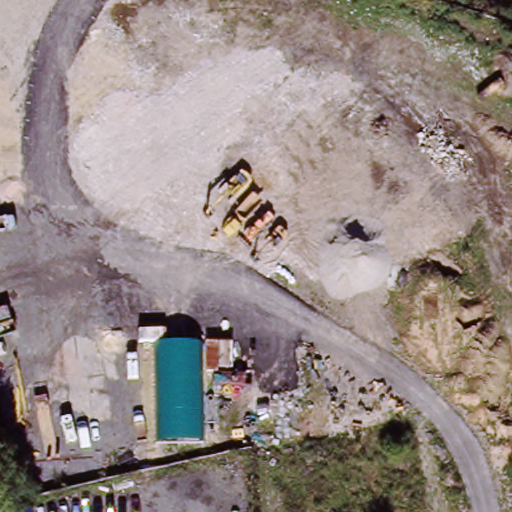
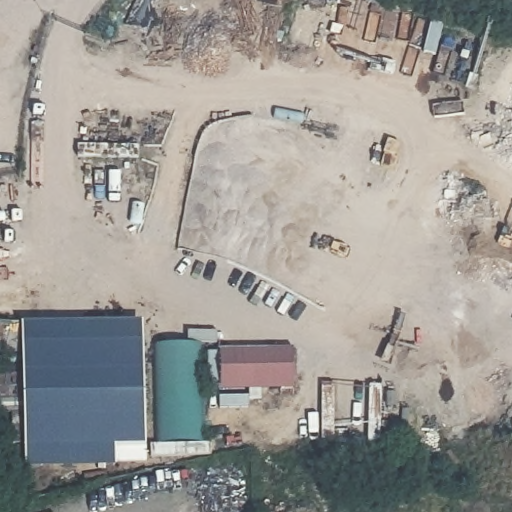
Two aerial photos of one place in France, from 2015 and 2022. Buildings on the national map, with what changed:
demolished [(113,107),(122,130),(77,150),(68,126),(113,107)]
new [(143,320),(146,441),(146,446),(146,461),(115,460),(115,466),(24,468),(20,324),(143,320)]
demolished [(114,419),(74,423),(65,338),(85,336),(86,344),(106,342),(114,419)]
new [(197,344),(201,442),(211,442),(213,457),(146,461),(146,441),(156,444),(153,344),(197,344)]
new [(294,349),(295,387),(219,389),(219,384),(208,383),(206,352),(219,350),(294,349)]

